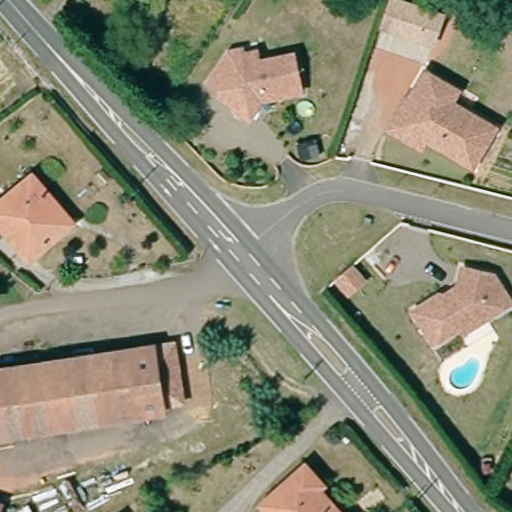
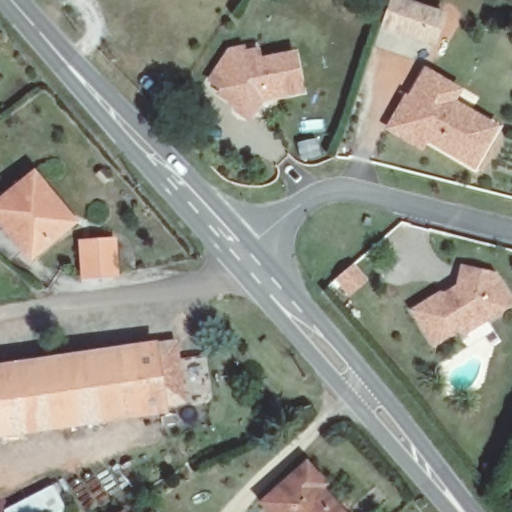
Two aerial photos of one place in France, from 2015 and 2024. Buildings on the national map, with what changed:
unchanged [(433,42),(419,37),(384,25),(393,0),(410,0),(429,6),(442,11),(433,42)]
unchanged [(227,111),(227,103),(210,91),(217,83),(203,72),(224,41),(239,39),(254,37),(257,50),(294,44),(299,86),(265,92),(253,110),(244,123),(227,111)]
unchanged [(407,122),(421,92),(418,89),(431,66),(447,74),(464,83),(458,94),(502,117),(477,167),(426,141),(409,133),(407,122)]
unchanged [(420,152),(387,134),(411,85),(418,89),(421,92),(407,122),(409,133),(426,141),(420,152)]
unchanged [(283,139),(280,123),(299,119),(302,135),(283,139)]
unchanged [(44,196),(65,221),(58,228),(28,256),(0,223),(0,202),(16,188),(29,177),(40,192),(44,196)]
new [(116,236),(120,277),(80,280),(77,239),(116,236)]
unchanged [(493,274),(501,286),(510,301),(499,309),(464,331),(460,325),(432,343),(412,310),(439,293),(444,294),(456,287),(462,267),(493,274)]
unchanged [(350,275),(363,290),(347,304),(334,289),(350,275)]
unchanged [(172,382),(171,390),(169,396),(168,399),(164,401),(156,401),(156,408),(0,431),(0,365),(166,341),(172,382)]
unchanged [(304,468),(318,484),(313,488),(330,509),(333,512),(265,512),(259,506),(304,468)]

